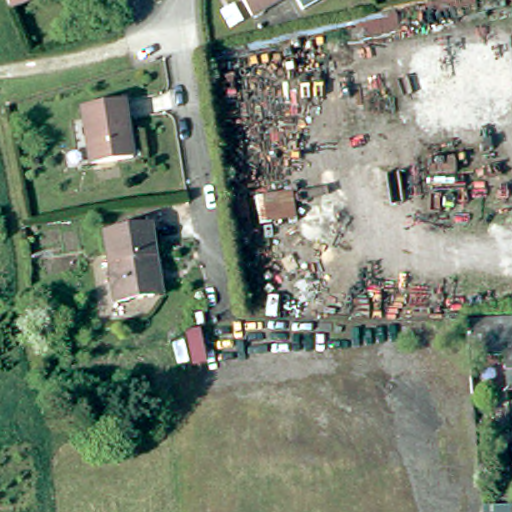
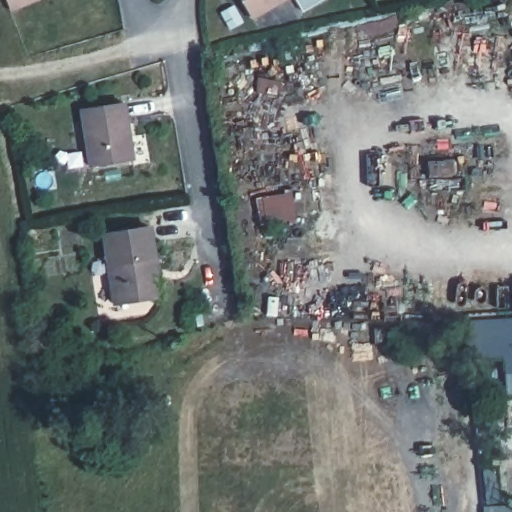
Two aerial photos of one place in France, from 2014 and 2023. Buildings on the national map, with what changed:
unchanged [(8,0),(32,0),(11,8),(8,0)]
unchanged [(282,0),(252,18),(240,0),(282,0)]
unchanged [(90,164),(84,106),(125,101),(133,159),(90,164)]
unchanged [(159,296),(118,302),(108,233),(155,226),(160,258),(165,295),(159,296)]
unchanged [(469,360),(466,322),(512,319),(512,388),(510,357),(469,360)]

